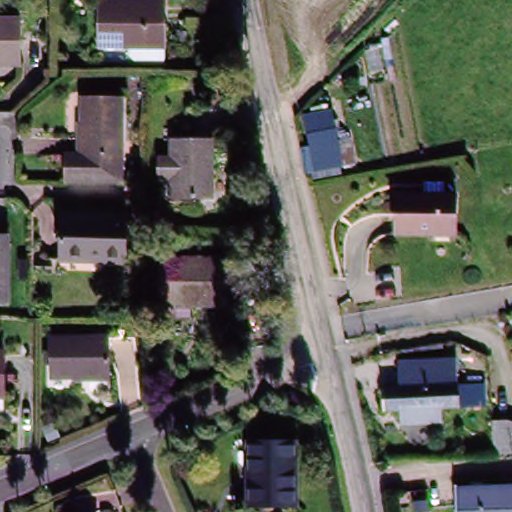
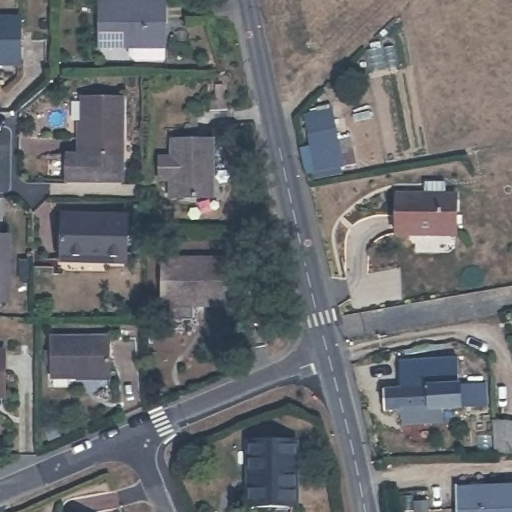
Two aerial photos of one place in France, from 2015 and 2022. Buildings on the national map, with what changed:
unchanged [(132,62),(128,57),(129,47),(100,47),(100,2),(163,4),(162,47),(162,62),(132,62)]
unchanged [(20,67),(0,67),(0,20),(20,20),(20,67)]
unchanged [(122,100),(121,157),(81,157),(81,155),(81,99),(122,100)]
unchanged [(299,112),(318,109),(338,105),(345,138),(335,140),(342,172),(304,182),(298,156),(303,155),(295,117),(299,112)]
unchanged [(194,112),(194,131),(166,131),(166,112),(194,112)]
unchanged [(216,200),(179,200),(179,182),(165,182),(165,159),(176,159),(176,141),(216,141),(216,200)]
unchanged [(121,157),(121,184),(66,184),(66,155),(81,155),(81,157),(121,157)]
unchanged [(456,196),(453,237),(392,235),(395,193),(456,196)]
unchanged [(126,219),(125,264),(60,262),(62,216),(126,219)]
unchanged [(12,303),(0,303),(0,237),(12,237),(12,303)]
unchanged [(162,316),(162,301),(162,256),(227,256),(227,302),(191,301),(191,316),(194,316),(194,332),(165,332),(165,316),(162,316)]
unchanged [(109,339),(109,376),(80,376),(80,380),(50,380),(50,338),(109,339)]
unchanged [(2,398),(0,398),(0,353),(3,353),(2,398)]
unchanged [(398,388),(397,358),(457,357),(458,385),(486,383),(487,407),(443,408),(443,424),(403,427),(402,411),(374,412),(373,388),(398,388)]
unchanged [(56,425),(61,438),(49,442),(44,429),(56,425)]
unchanged [(495,453),(494,426),(512,425),(512,457),(495,458),(495,453)]
unchanged [(290,443),(290,507),(244,507),(244,444),(290,443)]
unchanged [(512,489),(512,512),(454,512),(453,494),(512,489)]

